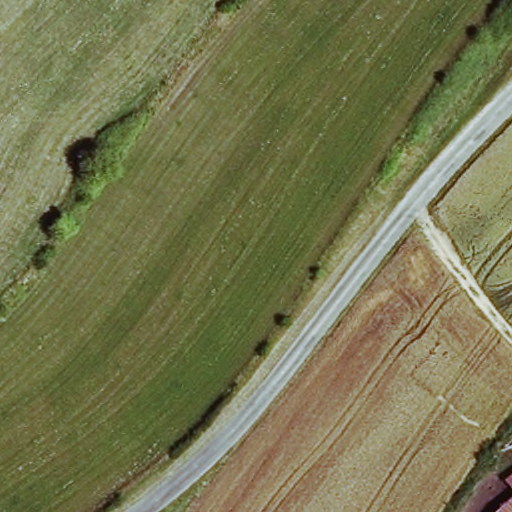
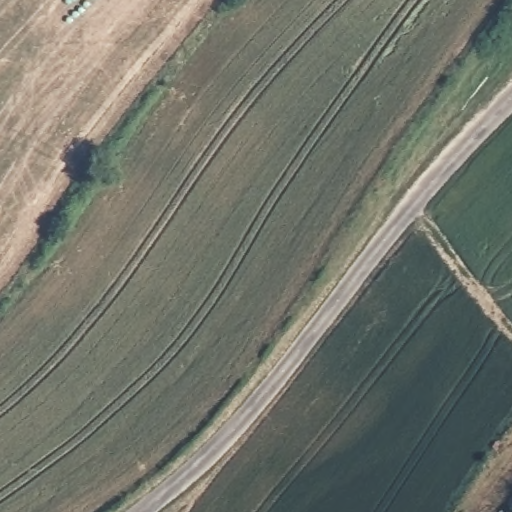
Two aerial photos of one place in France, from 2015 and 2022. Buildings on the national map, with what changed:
unchanged [(512,475),(512,490),(506,480),(512,475)]
unchanged [(512,497),(512,512),(498,512),(512,497)]

